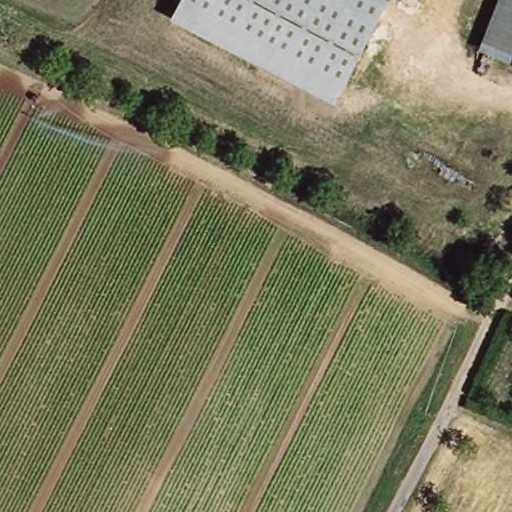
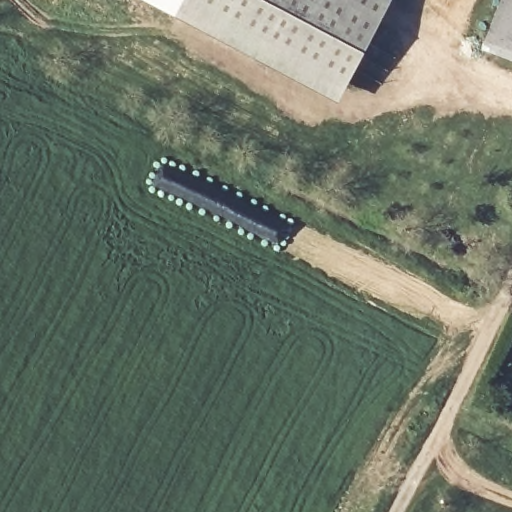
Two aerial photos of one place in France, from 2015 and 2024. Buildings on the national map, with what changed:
unchanged [(178,25),(189,0),(387,0),(342,99),(178,25)]
unchanged [(484,52),(504,0),(512,0),(512,63),(484,52)]

